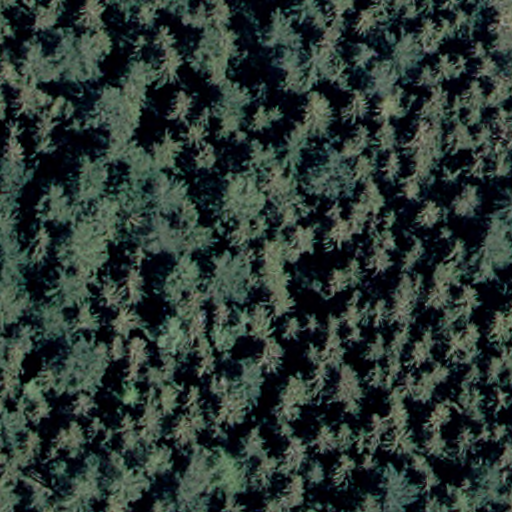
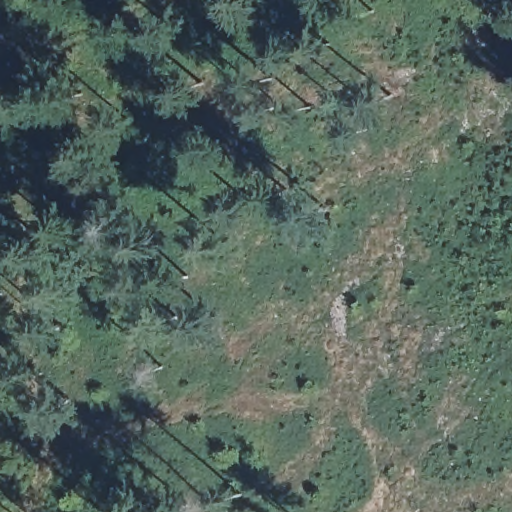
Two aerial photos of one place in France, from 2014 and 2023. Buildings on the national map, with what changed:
[]

